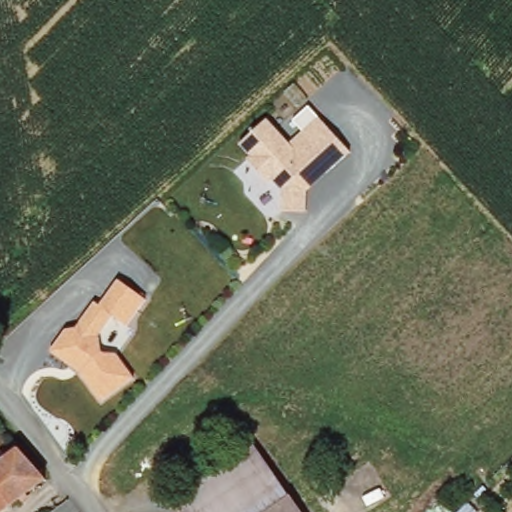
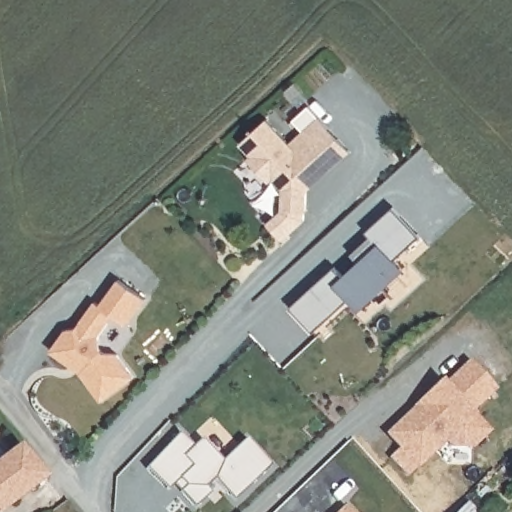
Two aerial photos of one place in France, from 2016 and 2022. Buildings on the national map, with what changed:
unchanged [(293,141),(322,116),(353,153),(311,188),(309,214),(283,212),(282,188),(242,139),(267,115),(293,141)]
new [(356,307),(351,301),(314,333),(292,308),(337,268),(347,278),(363,263),(358,258),(377,241),(370,234),(397,209),(425,240),(397,263),(406,272),(378,296),(360,312),(356,307)]
unchanged [(152,294),(132,327),(116,314),(102,341),(106,353),(119,351),(137,379),(102,401),(81,371),(51,350),(69,327),(79,327),(122,279),(152,294)]
new [(496,389),(470,413),(473,415),(491,431),(473,449),(452,448),(446,442),(419,467),(408,476),(390,458),(400,449),(386,435),(441,381),(443,384),(469,360),(496,389)]
new [(271,464),(234,499),(216,479),(206,487),(210,491),(195,505),(173,485),(167,489),(146,470),(179,434),(195,449),(202,440),(222,463),(247,439),(271,464)]
unchanged [(10,453),(15,449),(17,447),(42,480),(16,500),(2,512),(0,512),(0,460),(10,453)]
demolished [(302,500),(311,512),(261,512),(292,488),(302,500)]
unchanged [(466,500),(478,511),(478,512),(454,512),(466,500)]
new [(348,512),(339,512),(344,507),(348,512)]

